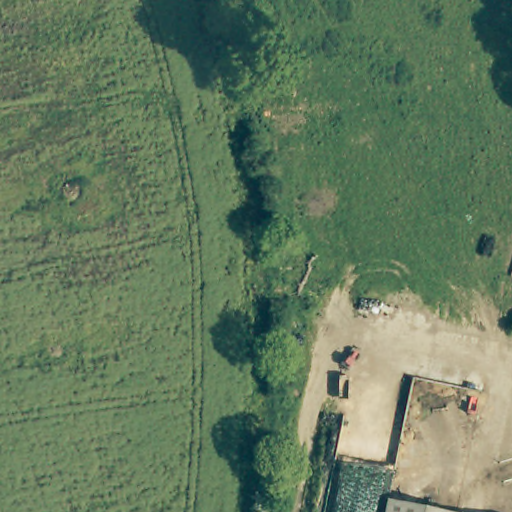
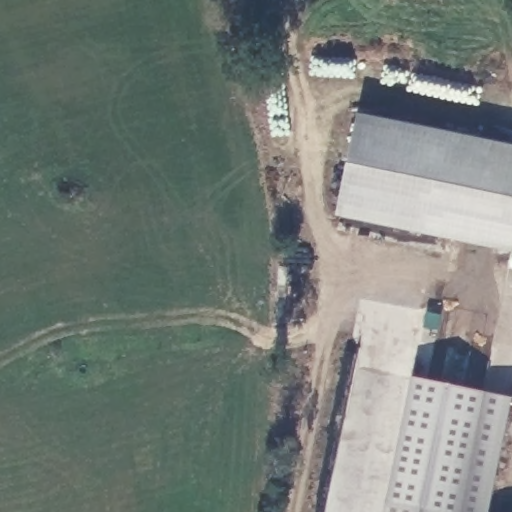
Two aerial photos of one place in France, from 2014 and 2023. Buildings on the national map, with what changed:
new [(337,217),(358,112),(512,144),(512,251),(337,217)]
new [(423,379),(512,399),(512,432),(494,512),(442,512),(395,502),(423,379)]
unchanged [(395,502),(442,512),(392,512),(395,502)]

